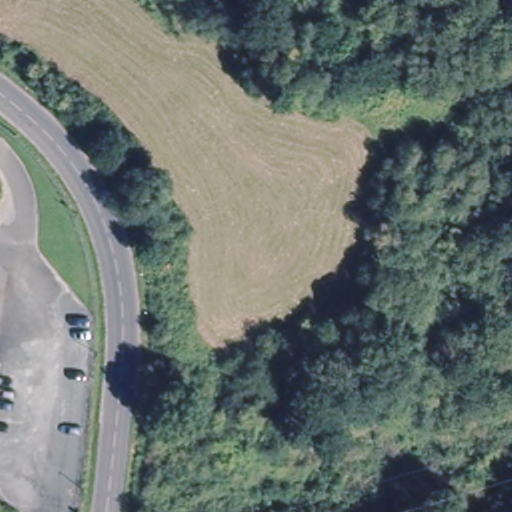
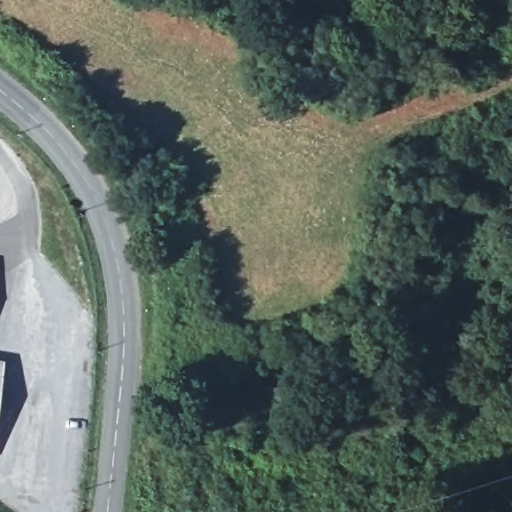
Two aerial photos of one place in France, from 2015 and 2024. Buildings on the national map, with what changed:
unchanged [(0,377),(0,359),(2,360),(0,377)]

